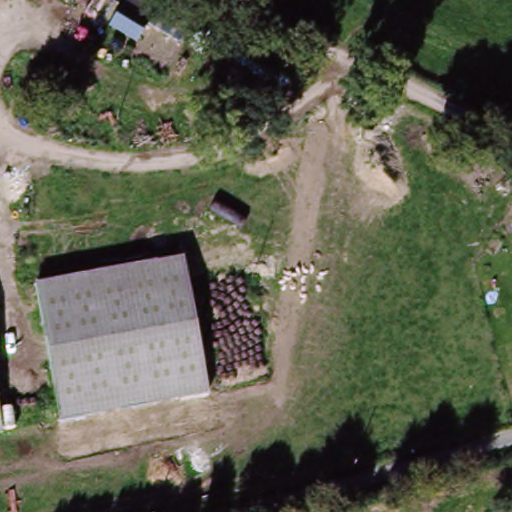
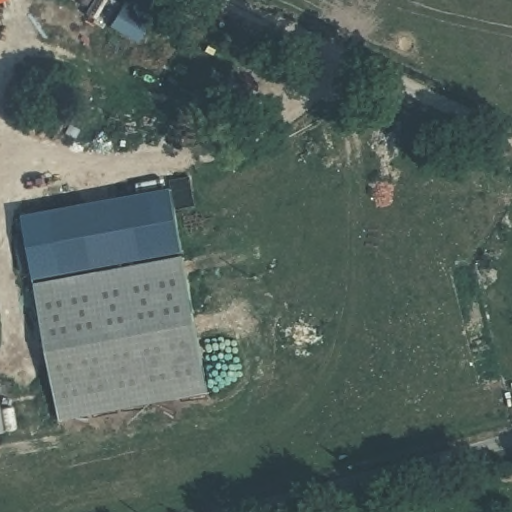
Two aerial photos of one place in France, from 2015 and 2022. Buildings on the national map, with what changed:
unchanged [(141,29),(118,10),(127,0),(146,0),(157,9),(141,29)]
new [(32,285),(22,217),(172,190),(183,257),(32,285)]
unchanged [(183,257),(207,393),(60,422),(32,285),(183,257)]
unchanged [(2,432),(0,432),(0,419),(2,432)]

